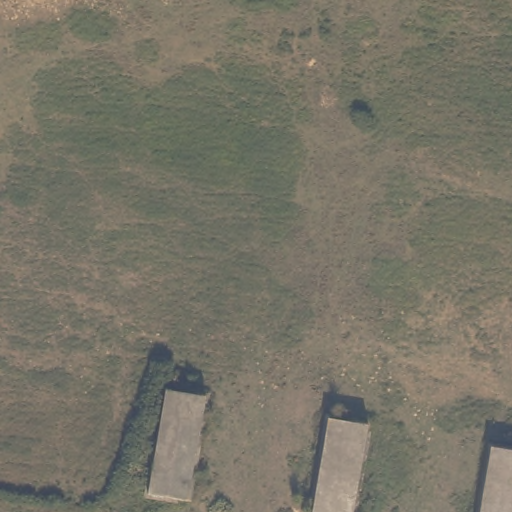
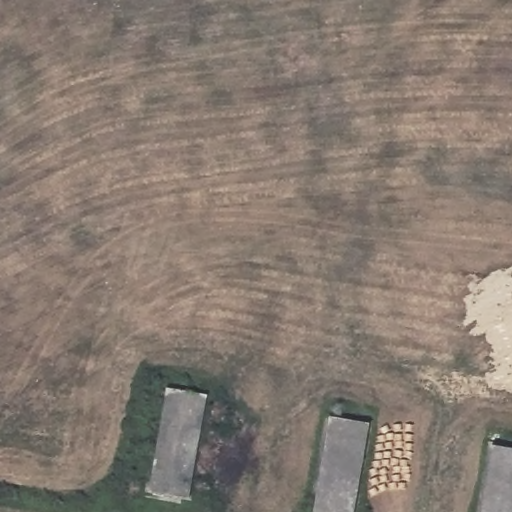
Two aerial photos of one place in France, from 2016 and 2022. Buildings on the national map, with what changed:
unchanged [(206,396),(188,501),(147,493),(165,389),(206,396)]
unchanged [(368,425),(354,512),(311,512),(327,418),(368,425)]
unchanged [(512,512),(479,512),(490,446),(512,450),(512,512)]

